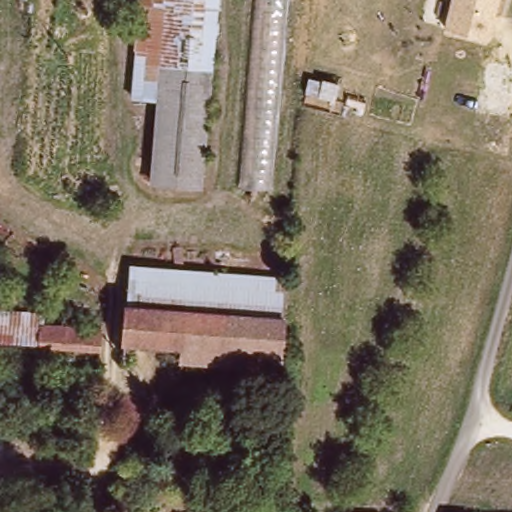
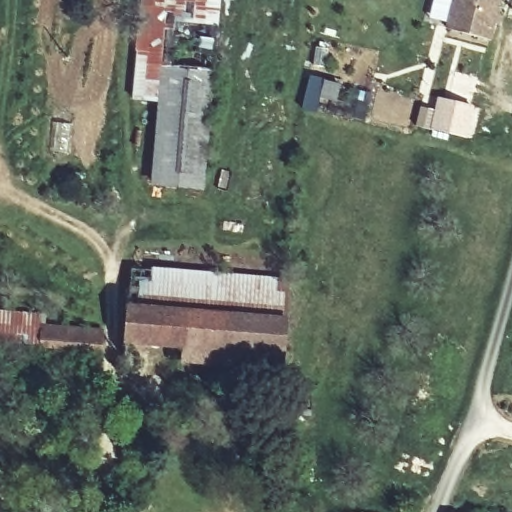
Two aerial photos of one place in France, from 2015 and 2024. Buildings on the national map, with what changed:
unchanged [(149,185),(157,102),(134,99),(144,0),(217,0),(197,190),(149,185)]
demolished [(242,184),(256,0),(292,0),(277,188),(242,184)]
unchanged [(502,0),(492,42),(445,29),(453,0),(502,0)]
new [(420,105),(433,109),(436,96),(480,108),(472,140),(415,125),(420,105)]
unchanged [(284,281),(282,309),(130,290),(129,290),(130,265),(284,275),(284,281)]
unchanged [(280,357),(285,372),(183,365),(183,349),(118,350),(130,290),(282,309),(280,357)]
unchanged [(45,322),(101,328),(100,348),(0,342),(0,314),(45,317),(45,322)]
unchanged [(266,509),(273,509),(273,512),(265,512),(266,509)]

